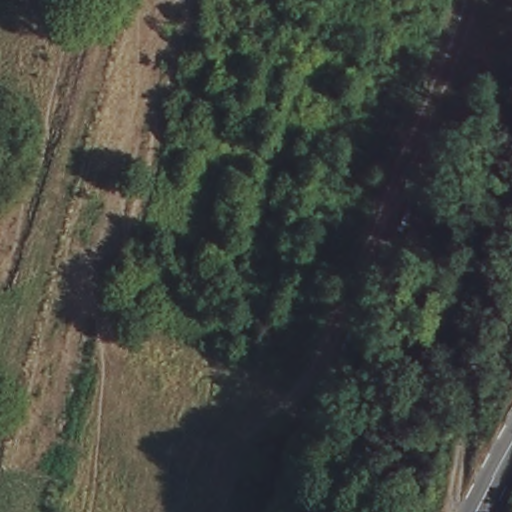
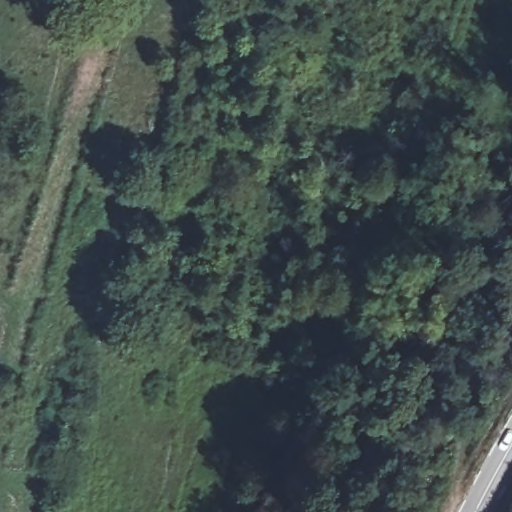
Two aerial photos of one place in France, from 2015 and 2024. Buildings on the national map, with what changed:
unchanged [(344,512),(338,512),(326,507),(337,487),(354,495),(344,512)]

